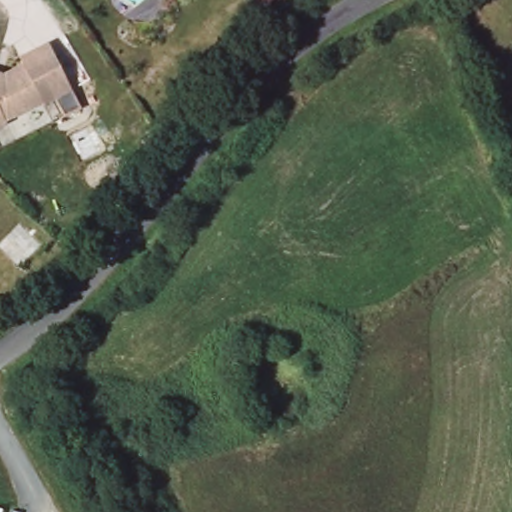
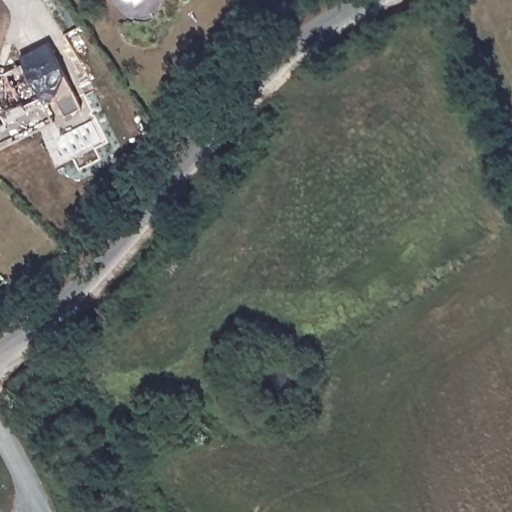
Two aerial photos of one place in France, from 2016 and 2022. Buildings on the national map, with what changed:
unchanged [(0,132),(0,75),(6,77),(26,67),(23,60),(51,46),(75,94),(46,108),(10,127),(0,132)]

